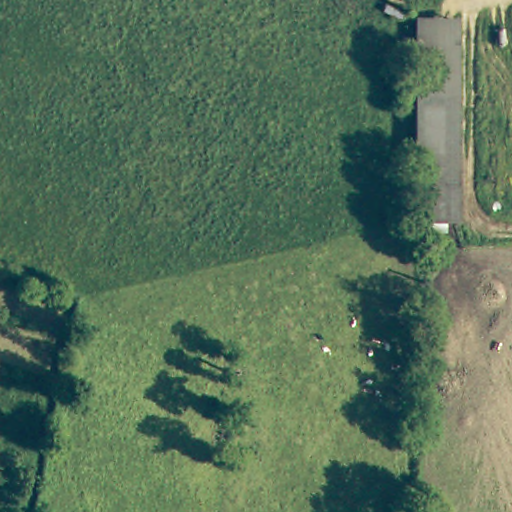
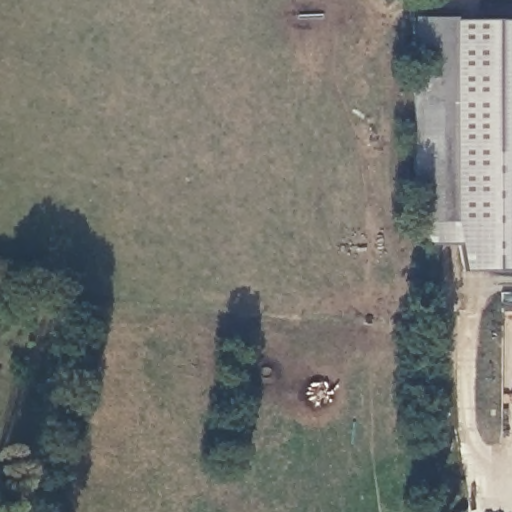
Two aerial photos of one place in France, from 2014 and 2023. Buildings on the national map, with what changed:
new [(512,272),(464,273),(458,245),(429,245),(418,217),(459,217),(460,19),(512,18),(512,272)]
unchanged [(419,19),(460,19),(459,217),(418,217),(419,19)]

